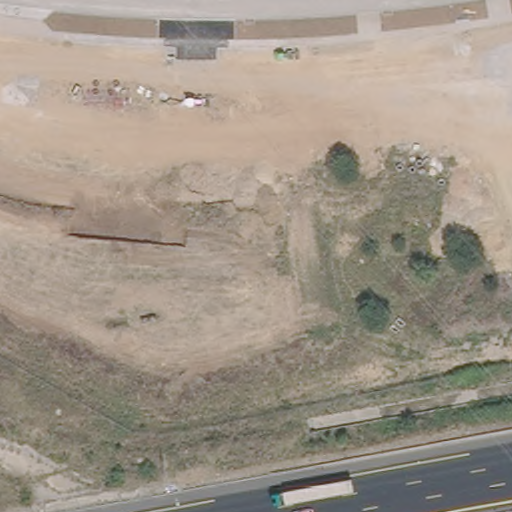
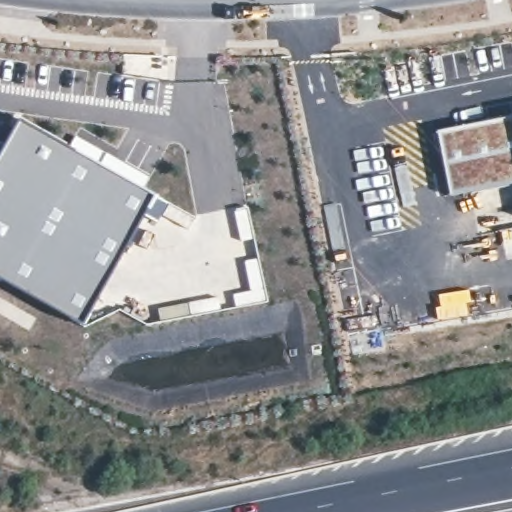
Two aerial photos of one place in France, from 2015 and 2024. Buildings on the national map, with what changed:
new [(512,115),(512,184),(501,187),(449,197),(436,131),(512,115)]
new [(20,120),(155,195),(83,323),(0,277),(0,141),(8,145),(20,120)]

